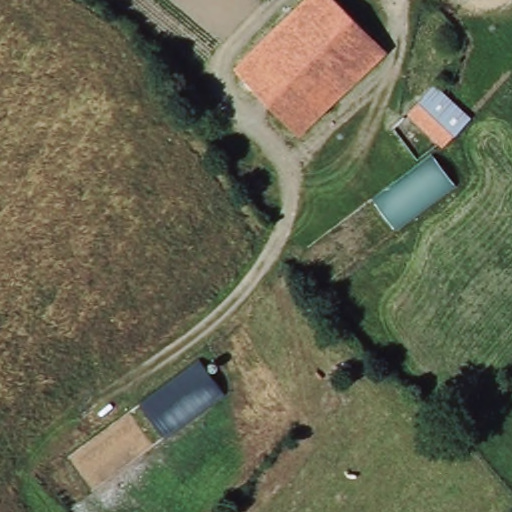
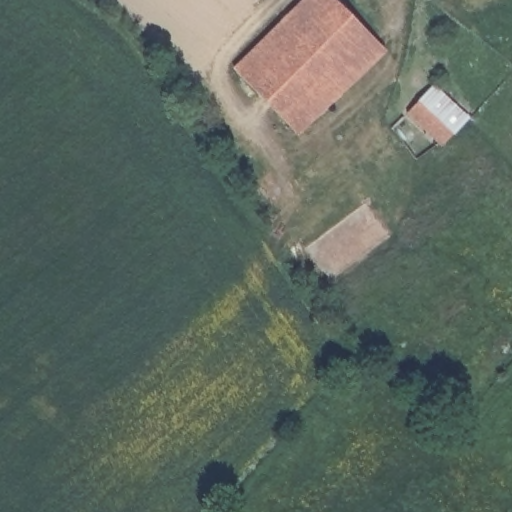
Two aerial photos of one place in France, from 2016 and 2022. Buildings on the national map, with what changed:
unchanged [(380,50),(297,135),(230,71),(301,0),(329,0),(380,50)]
unchanged [(445,102),(463,118),(455,127),(438,146),(433,143),(402,112),(428,86),(445,102)]
demolished [(431,155),(454,184),(395,231),(372,201),(431,155)]
unchanged [(369,203),(392,232),(333,279),(310,249),(369,203)]
demolished [(207,359),(213,365),(205,370),(223,391),(162,438),(139,404),(202,363),(207,359)]

